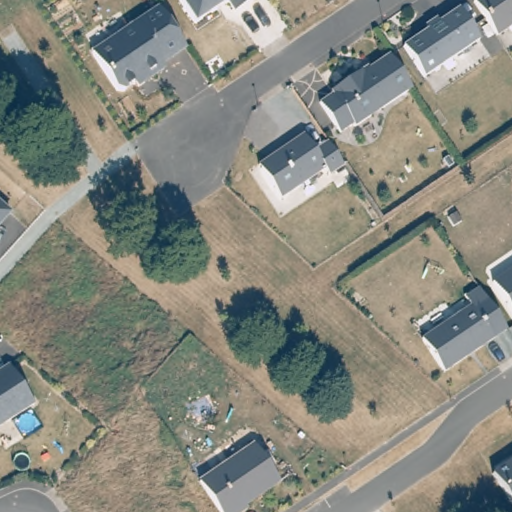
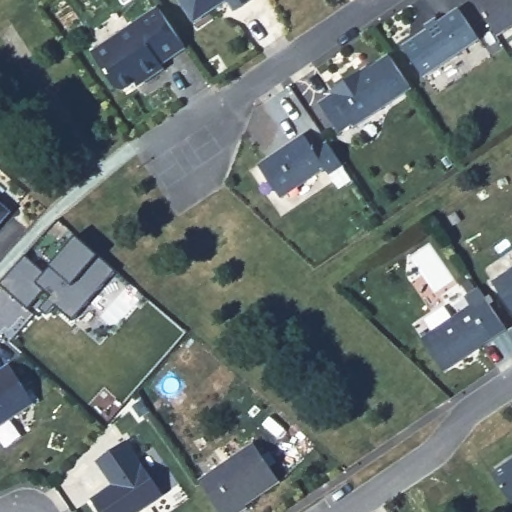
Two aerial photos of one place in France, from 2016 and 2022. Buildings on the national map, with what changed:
unchanged [(228,0),(195,23),(180,0),(251,0),(235,11),(228,0)]
unchanged [(512,0),(512,24),(496,35),(473,1),(474,0),(512,0)]
unchanged [(479,39),(423,77),(403,46),(427,29),(425,26),(436,18),(438,22),(458,9),(479,39)]
unchanged [(176,45),(181,52),(157,69),(159,73),(140,86),(137,82),(119,95),(112,93),(87,58),(154,12),(176,45)]
unchanged [(407,93),(350,131),(348,129),(335,138),(315,108),(328,99),(326,96),(356,76),(358,78),(384,60),(407,93)]
unchanged [(332,147),(344,165),(330,174),(326,168),(278,200),(258,171),(275,159),(272,156),(304,134),(315,150),(328,142),(332,147)]
unchanged [(8,212),(0,222),(0,206),(8,212)]
new [(25,255),(44,271),(50,265),(76,235),(97,253),(116,270),(72,320),(53,304),(44,315),(38,310),(50,296),(43,290),(28,309),(0,285),(0,284),(25,255)]
unchanged [(512,266),(512,316),(489,282),(512,266)]
unchanged [(441,372),(418,339),(469,305),(465,295),(479,285),(506,327),(441,372)]
unchanged [(7,368),(33,407),(0,429),(0,373),(7,368)]
new [(90,498),(110,484),(94,461),(125,441),(163,496),(140,512),(100,512),(90,498)]
unchanged [(198,481),(254,444),(278,482),(237,509),(239,511),(238,512),(219,512),(198,481)]
unchanged [(512,499),(495,474),(512,463),(512,499)]

